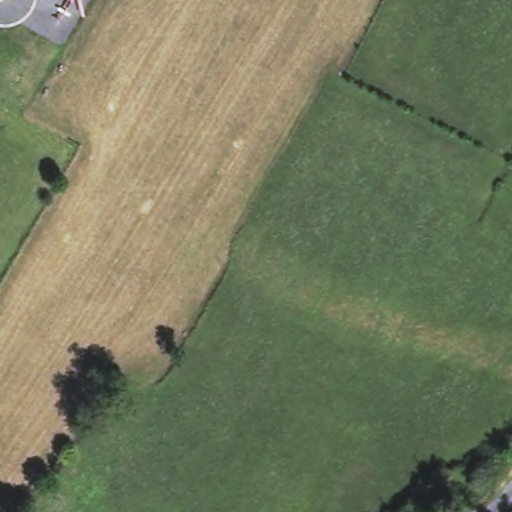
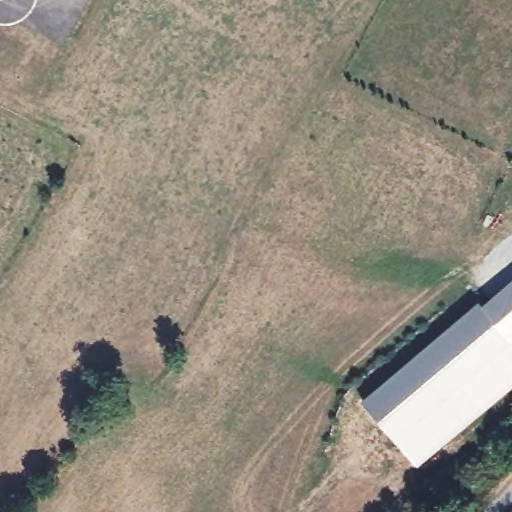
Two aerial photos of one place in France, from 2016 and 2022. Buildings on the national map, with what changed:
new [(485,298),(512,330),(512,386),(423,461),(368,396),(485,298)]

